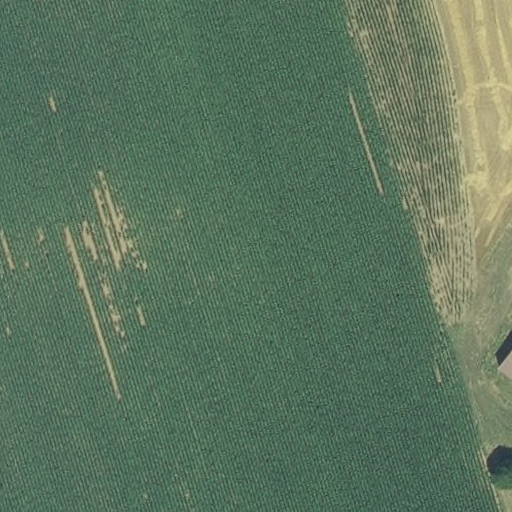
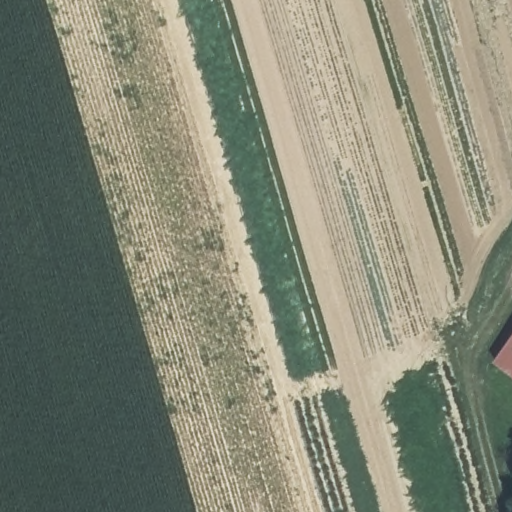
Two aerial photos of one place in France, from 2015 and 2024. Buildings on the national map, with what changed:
unchanged [(512,353),(512,371),(503,364),(512,353)]

